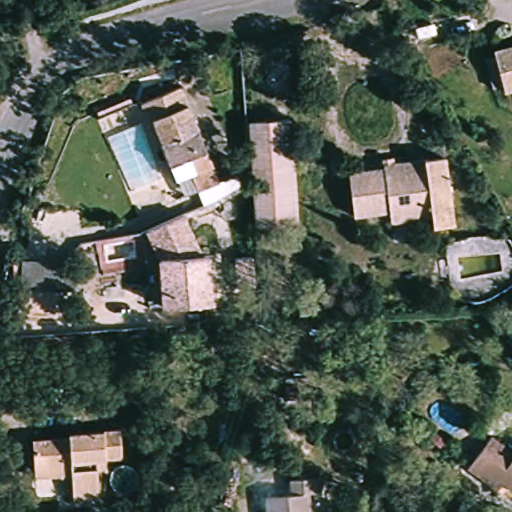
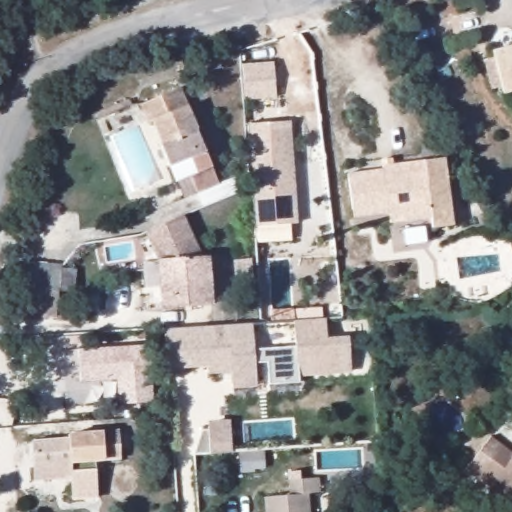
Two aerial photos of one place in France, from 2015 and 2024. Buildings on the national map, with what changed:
unchanged [(488,52),(512,46),(512,91),(500,94),(488,52)]
unchanged [(162,160),(146,122),(152,120),(143,97),(180,86),(215,180),(201,184),(196,172),(186,175),(170,179),(162,160)]
new [(140,125),(160,180),(128,193),(104,140),(140,125)]
unchanged [(290,126),(297,217),(257,220),(250,128),(290,126)]
unchanged [(383,211),(351,214),(345,170),(446,157),(456,225),(430,227),(427,219),(400,222),(385,224),(383,211)]
unchanged [(187,218),(203,262),(213,262),(215,307),(170,308),(167,263),(151,229),(187,218)]
unchanged [(98,263),(96,293),(60,291),(57,315),(15,308),(26,258),(98,263)]
new [(254,350),(295,346),(293,322),(326,318),(327,338),(348,337),(351,373),(299,377),(299,383),(270,385),(267,363),(255,363),(256,387),(232,389),(231,374),(207,376),(207,367),(166,370),(163,330),(251,323),(254,350)]
new [(118,406),(116,380),(82,382),(78,349),(147,345),(152,400),(118,406)]
new [(207,430),(207,420),(230,419),(232,452),(208,453),(192,455),(201,430),(207,430)]
unchanged [(124,462),(96,463),(99,500),(72,501),(70,465),(31,466),(27,440),(69,438),(73,434),(121,432),(124,462)]
unchanged [(490,485),(477,475),(502,446),(512,454),(512,486),(499,475),(490,485)]
unchanged [(286,492),(285,476),(316,474),(317,490),(303,492),(305,512),(261,512),(260,494),(286,492)]

